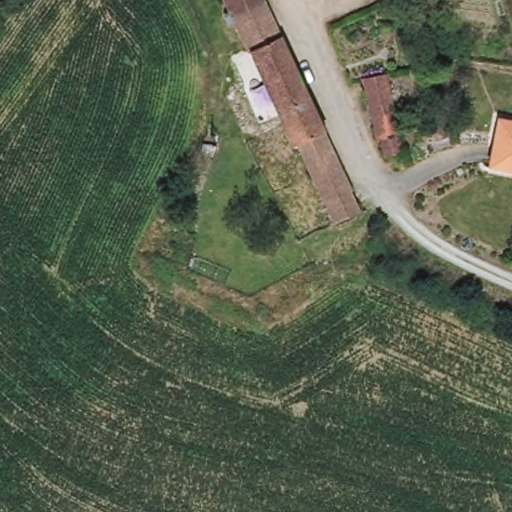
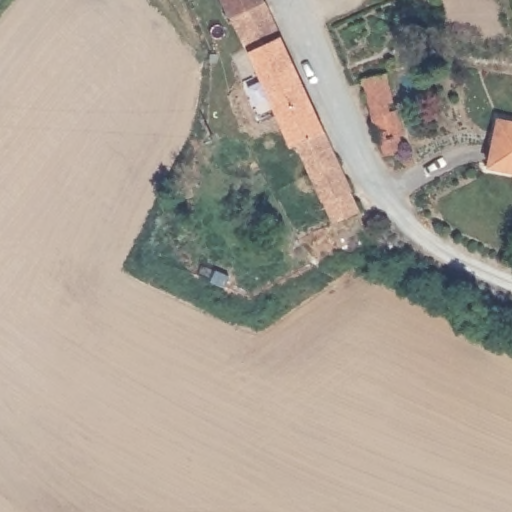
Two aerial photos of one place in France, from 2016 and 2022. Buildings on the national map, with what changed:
unchanged [(356,207),(330,219),(306,167),(294,141),(286,144),(226,11),(221,0),(260,0),(334,159),(356,207)]
unchanged [(388,70),(393,100),(388,101),(390,105),(397,104),(403,130),(399,130),(403,146),(398,149),(402,165),(386,168),(378,134),(373,135),(362,76),(388,70)]
unchanged [(512,174),(488,171),(494,122),(512,125),(512,174)]

